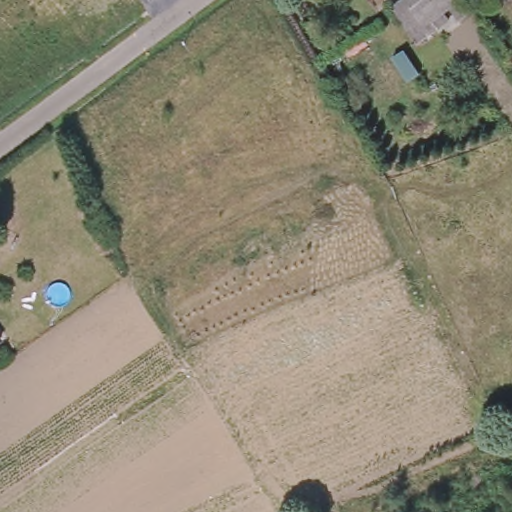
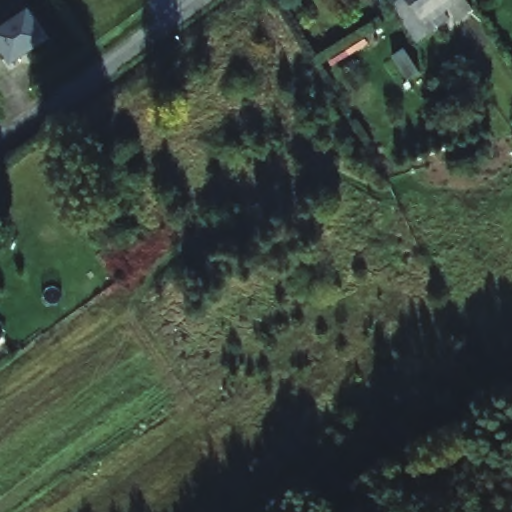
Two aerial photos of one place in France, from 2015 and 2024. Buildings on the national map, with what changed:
unchanged [(471,10),(455,20),(449,11),(427,26),(433,33),(416,46),(390,9),(402,0),(465,0),(471,10)]
new [(0,48),(0,25),(27,7),(48,37),(10,63),(0,48)]

